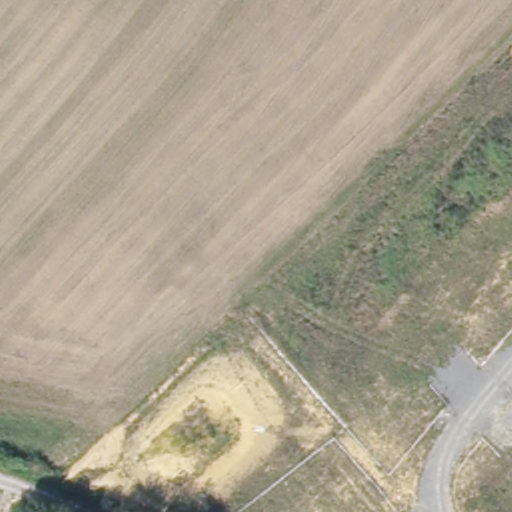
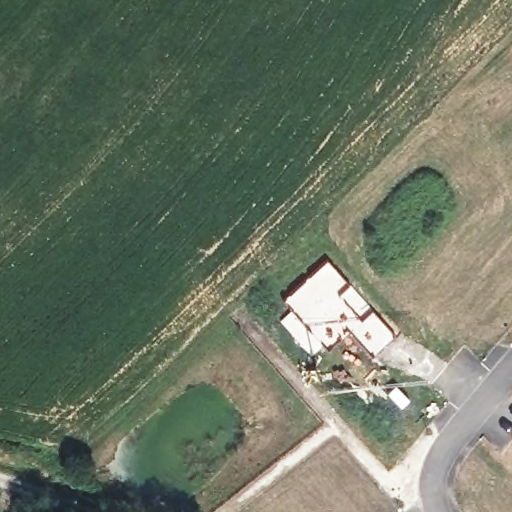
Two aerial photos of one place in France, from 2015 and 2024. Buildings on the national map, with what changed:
new [(326,261),(346,283),(335,292),(343,303),(337,308),(340,311),(333,317),(311,321),(308,323),(285,298),(326,261)]
new [(394,334),(372,354),(348,327),(328,345),(308,323),(311,321),(333,317),(340,311),(337,308),(343,303),(335,292),(346,283),(394,334)]

